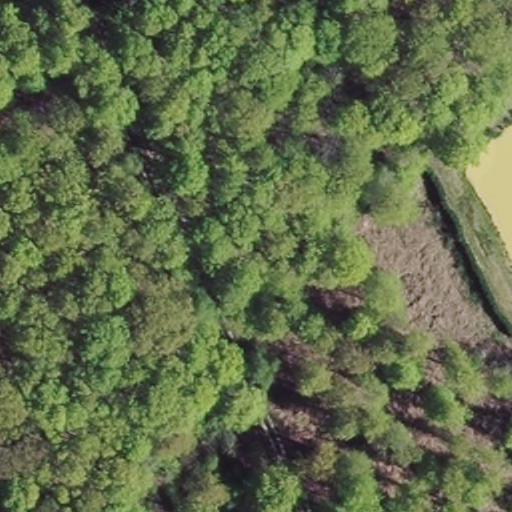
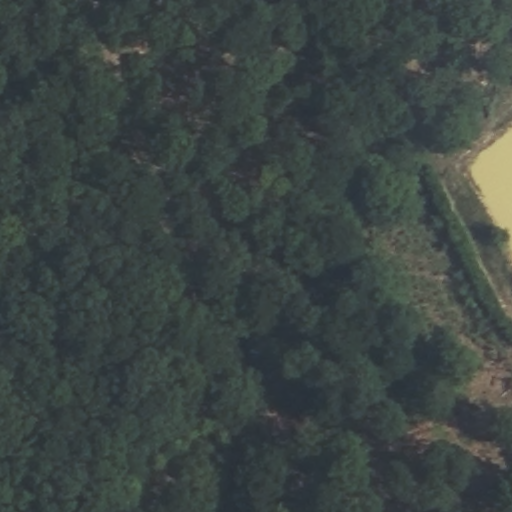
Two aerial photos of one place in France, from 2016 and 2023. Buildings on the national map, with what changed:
[]

